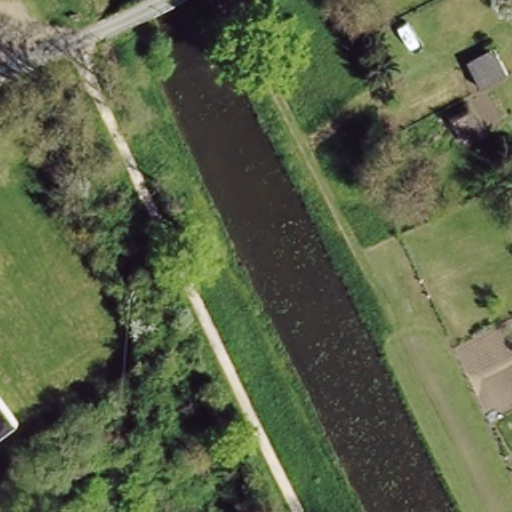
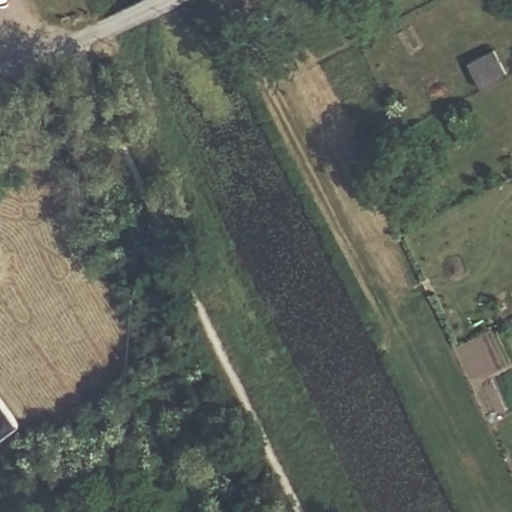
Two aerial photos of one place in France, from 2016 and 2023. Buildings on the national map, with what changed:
unchanged [(481,93),(466,65),(492,51),(506,80),(481,93)]
unchanged [(12,428),(0,436),(0,410),(12,428)]

